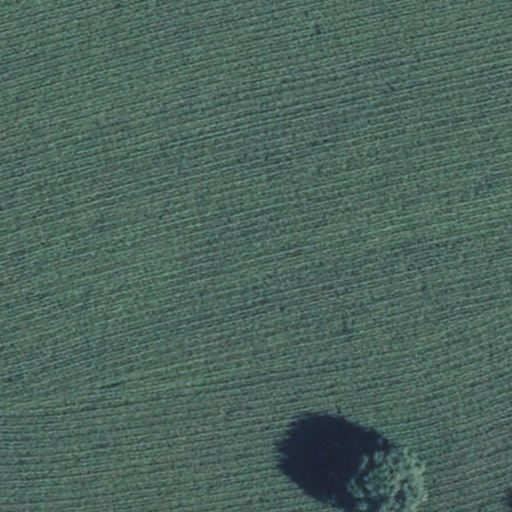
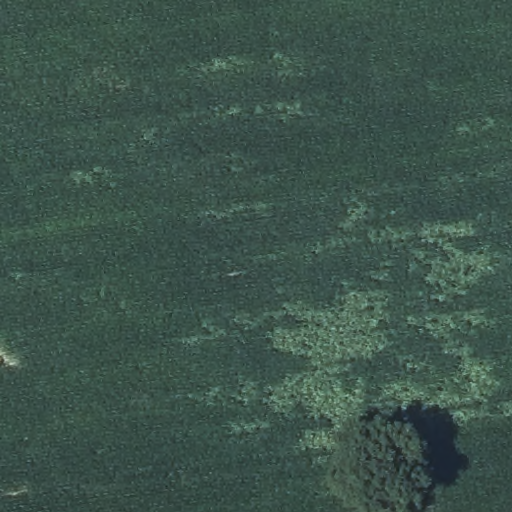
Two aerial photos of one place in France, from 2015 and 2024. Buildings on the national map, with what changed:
[]

